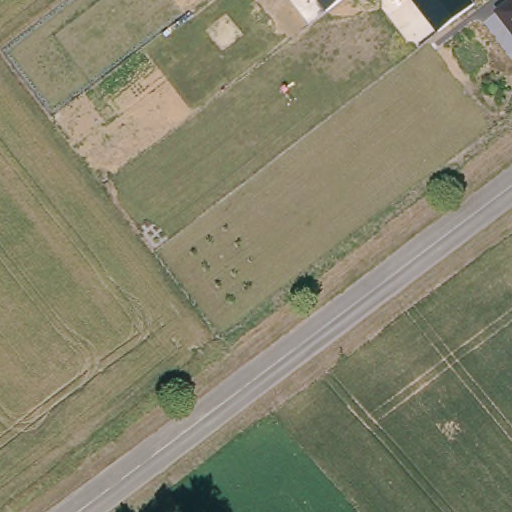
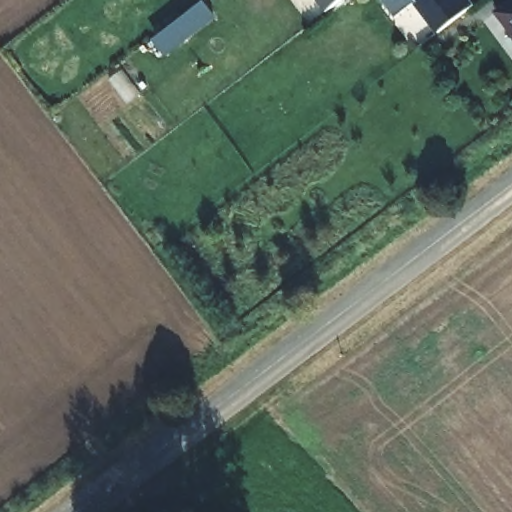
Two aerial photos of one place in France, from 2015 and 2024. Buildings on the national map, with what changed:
new [(205,0),(214,13),(193,29),(195,32),(169,52),(157,37),(205,0)]
unchanged [(317,0),(342,0),(326,12),(317,0)]
unchanged [(437,32),(413,0),(471,0),(475,5),(437,32)]
unchanged [(512,0),(512,34),(495,12),(511,0),(512,0)]

